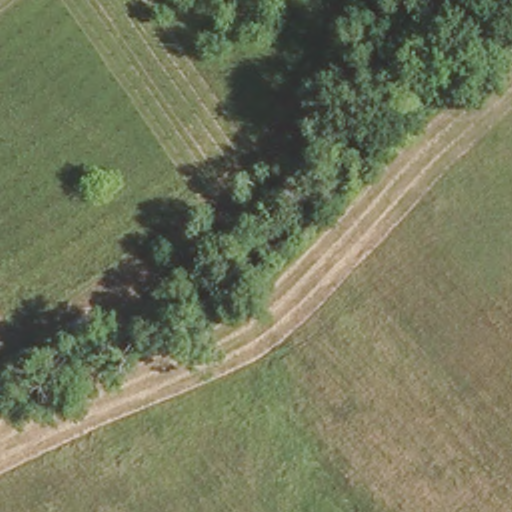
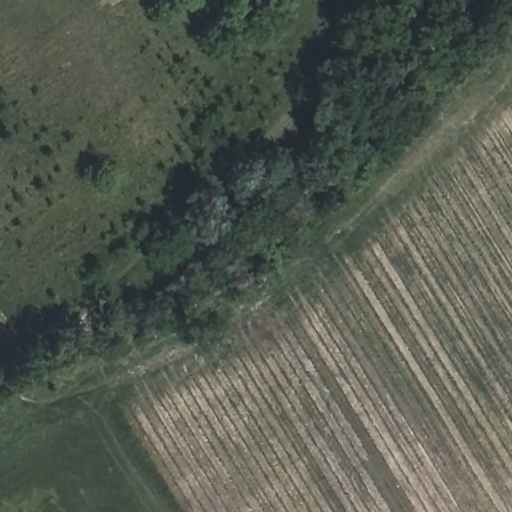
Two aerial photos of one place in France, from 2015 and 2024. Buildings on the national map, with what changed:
[]

